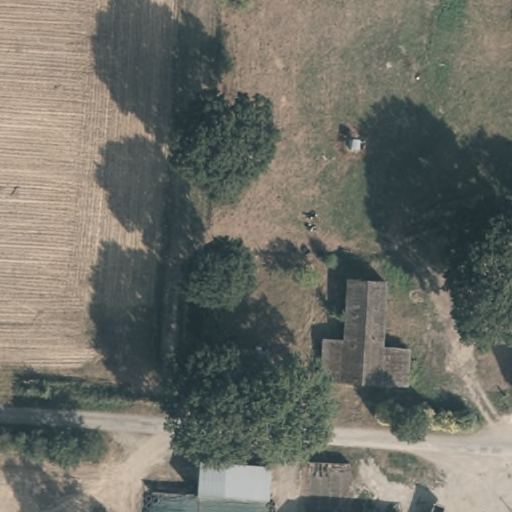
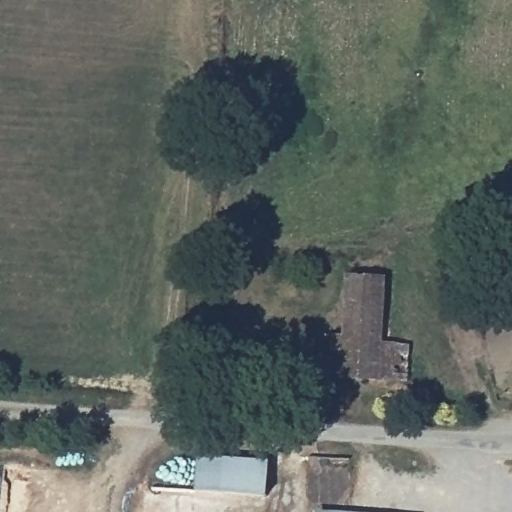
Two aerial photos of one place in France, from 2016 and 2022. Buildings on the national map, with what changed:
unchanged [(386,343),(412,343),(412,375),(325,373),(325,339),(346,340),(348,272),(386,272),(386,343)]
unchanged [(262,369),(223,367),(224,345),(263,348),(262,369)]
unchanged [(269,494),(204,493),(204,463),(268,463),(269,494)]
unchanged [(337,512),(315,512),(315,508),(337,512)]

